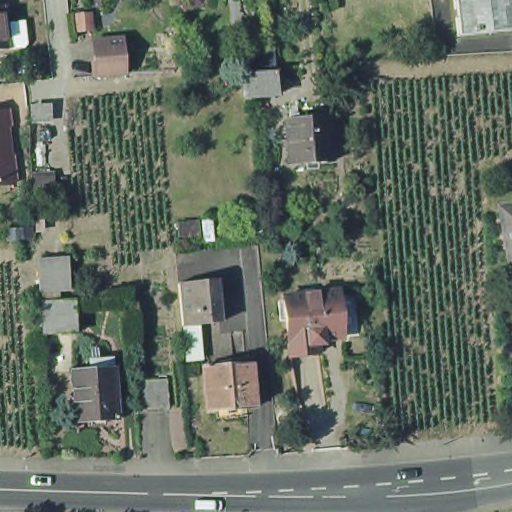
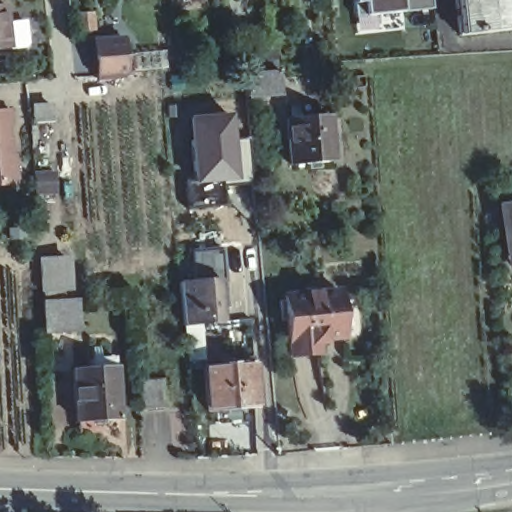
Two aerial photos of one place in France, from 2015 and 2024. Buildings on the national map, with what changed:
unchanged [(0,43),(0,0),(3,19),(21,17),(24,40),(5,43),(0,43)]
unchanged [(357,17),(356,0),(434,0),(435,11),(357,17)]
unchanged [(448,33),(445,0),(503,0),(505,26),(448,33)]
unchanged [(102,68),(100,68),(98,49),(97,32),(127,31),(128,48),(129,66),(102,68)]
unchanged [(277,91),(244,94),(242,75),(276,72),(277,91)]
unchanged [(0,107),(10,106),(11,123),(8,123),(15,179),(0,180),(0,107)]
unchanged [(50,121),(33,121),(31,109),(49,107),(50,121)]
unchanged [(331,155),(288,157),(285,113),(329,110),(331,155)]
new [(230,114),(239,186),(193,189),(185,119),(230,114)]
unchanged [(54,197),(35,197),(34,176),(53,175),(54,197)]
unchanged [(498,271),(492,232),(498,231),(493,202),(512,199),(512,269),(498,271)]
unchanged [(22,236),(9,237),(7,228),(22,227),(22,236)]
unchanged [(72,329),(44,331),(42,299),(44,299),(43,291),(42,258),(67,257),(68,290),(69,297),(70,297),(72,329)]
unchanged [(229,322),(192,324),(188,282),(225,279),(229,322)]
unchanged [(305,353),(287,355),(282,295),(335,291),(336,311),(352,310),(354,330),(338,330),(339,336),(321,338),(322,343),(315,344),(316,352),(305,353)]
unchanged [(260,405),(250,405),(251,414),(220,416),(220,408),(210,409),(206,365),(223,364),(222,359),(255,356),(260,405)]
unchanged [(123,419),(80,422),(76,371),(96,370),(95,359),(117,359),(117,368),(120,368),(123,419)]
unchanged [(171,406),(141,408),(138,379),(168,377),(171,406)]

